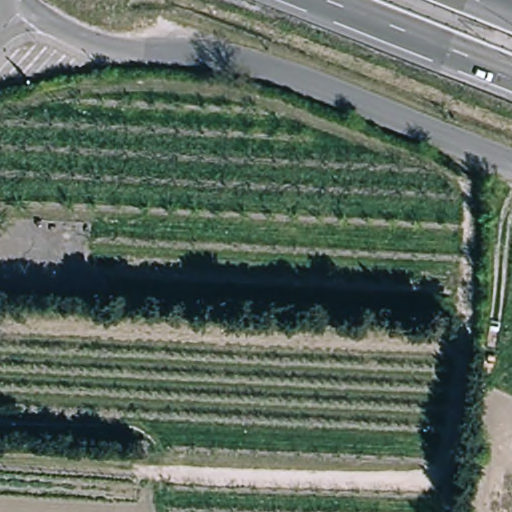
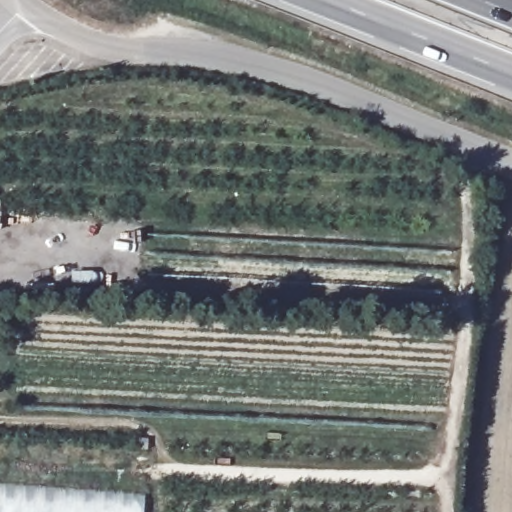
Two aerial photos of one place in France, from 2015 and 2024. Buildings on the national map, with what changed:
new [(0,512),(0,483),(144,495),(143,512),(0,512)]

